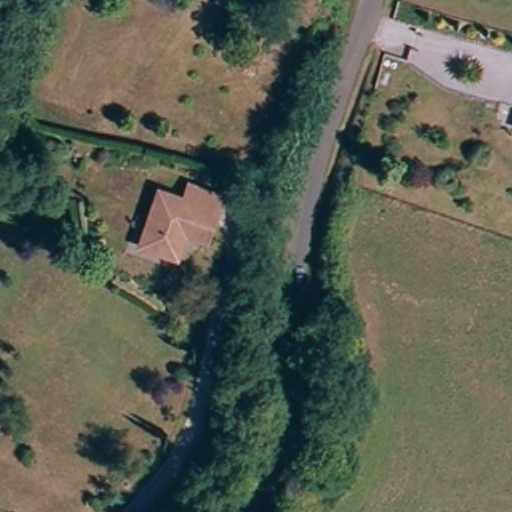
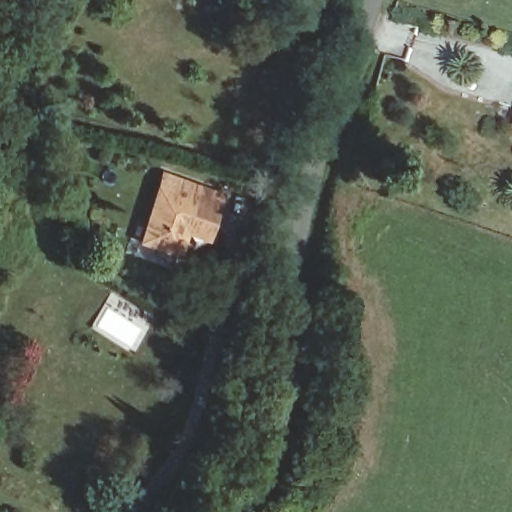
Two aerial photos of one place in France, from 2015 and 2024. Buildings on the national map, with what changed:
unchanged [(512,134),(511,134),(512,132),(512,134)]
unchanged [(177,237),(167,261),(133,247),(153,199),(175,206),(181,191),(213,204),(209,215),(198,244),(177,237)]

